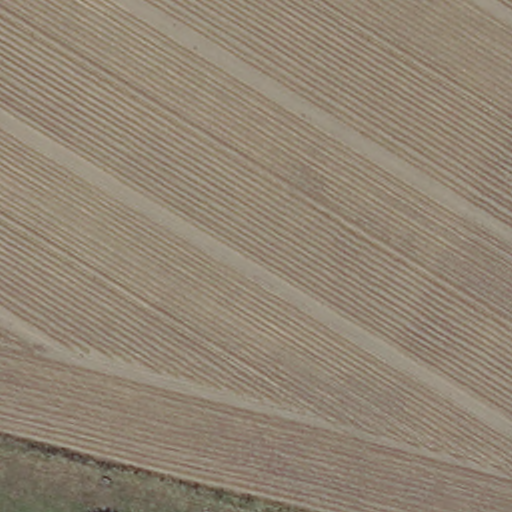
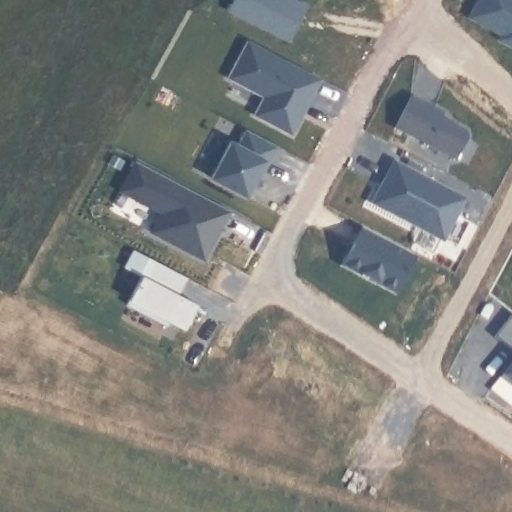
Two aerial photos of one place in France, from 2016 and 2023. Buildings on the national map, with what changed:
new [(233,0),(298,0),(307,4),(290,39),(229,8),(233,0)]
new [(505,29),(472,12),(478,0),(512,0),(512,39),(502,34),(505,29)]
new [(321,77),(292,132),(256,113),(266,95),(230,76),(250,39),(321,77)]
new [(444,112),(441,118),(466,130),(468,137),(456,158),(396,126),(412,96),(444,112)]
new [(269,161),(266,159),(246,195),(212,177),(231,141),(239,144),(246,128),(277,144),(269,161)]
new [(229,209),(204,258),(150,229),(160,210),(120,189),(135,159),(229,209)]
new [(394,161),(465,198),(445,239),(373,203),(394,161)]
new [(414,257),(395,292),(343,265),(361,230),(414,257)]
new [(187,276),(179,293),(197,302),(184,328),(170,320),(167,325),(127,304),(142,276),(125,267),(134,248),(187,276)]
new [(512,315),(512,349),(495,336),(512,315)]
new [(512,364),(512,381),(503,374),(512,364)]

